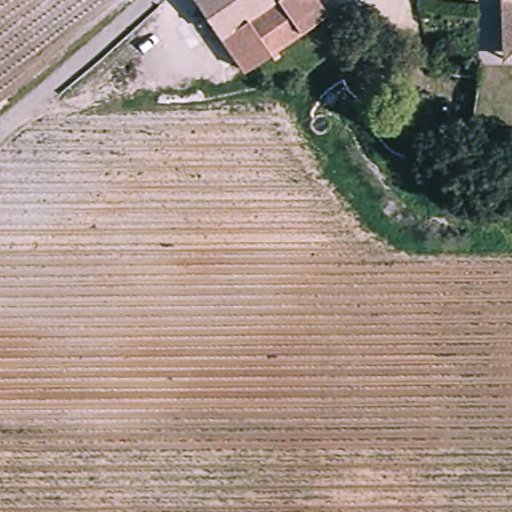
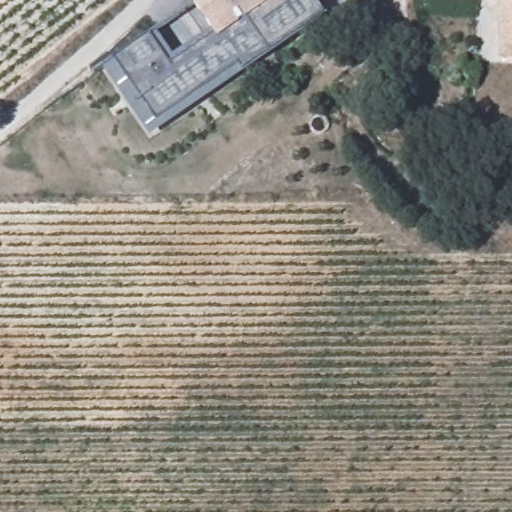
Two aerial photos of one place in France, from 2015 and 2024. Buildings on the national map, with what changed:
unchanged [(236,69),(196,0),(319,0),(326,12),(236,69)]
unchanged [(507,53),(502,0),(512,0),(512,52),(507,53)]
new [(236,69),(149,134),(104,68),(157,31),(173,55),(212,26),(236,69)]

